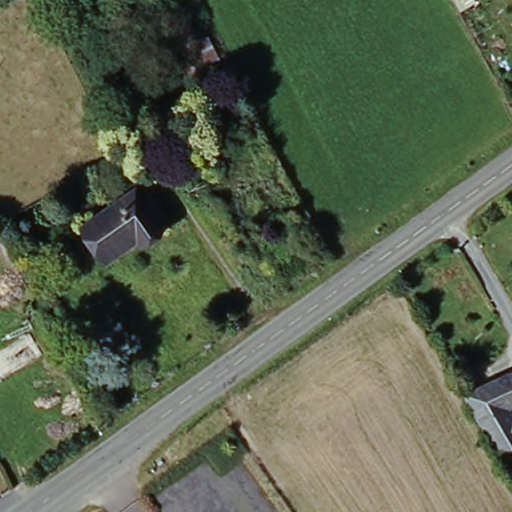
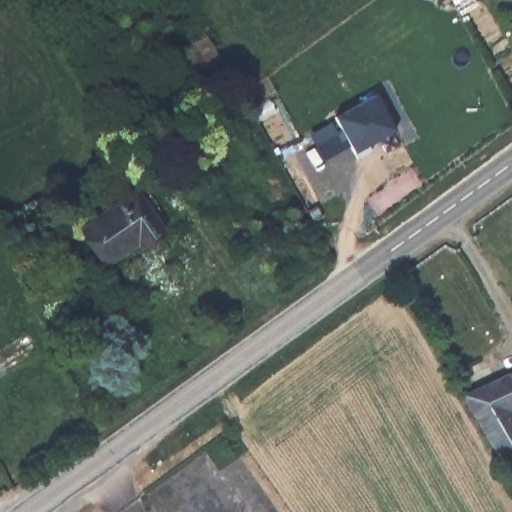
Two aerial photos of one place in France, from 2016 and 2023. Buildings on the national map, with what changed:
new [(460,14),(453,3),(449,4),(447,0),(471,0),(475,6),(460,14)]
unchanged [(210,34),(224,64),(189,84),(172,55),(210,34)]
new [(376,97),(396,133),(369,148),(372,154),(358,161),(335,119),(376,97)]
unchanged [(84,224),(137,186),(166,228),(139,247),(134,242),(107,260),(84,224)]
unchanged [(468,397),(512,373),(512,457),(502,463),(468,397)]

